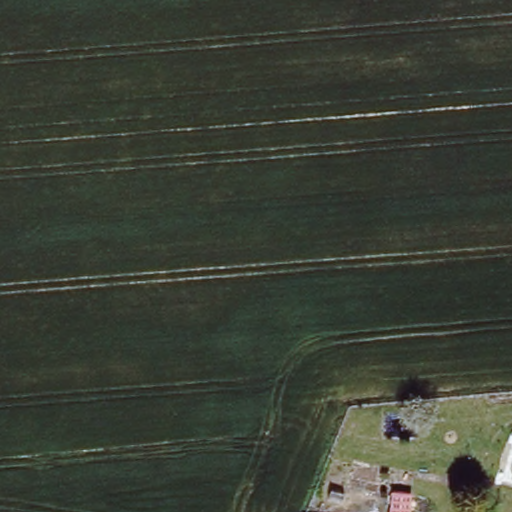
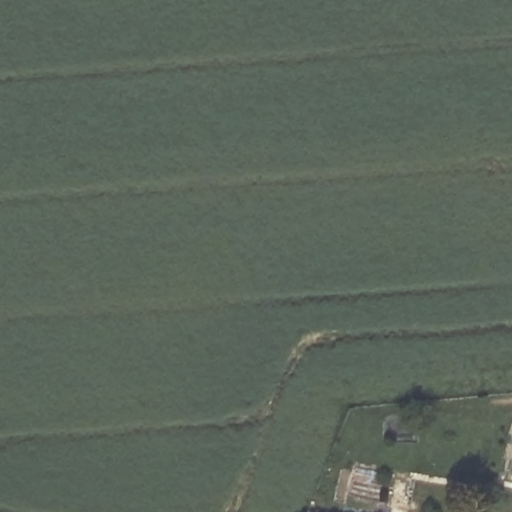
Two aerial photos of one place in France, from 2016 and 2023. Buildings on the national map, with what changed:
unchanged [(506,444),(512,445),(512,468),(499,465),(506,444)]

